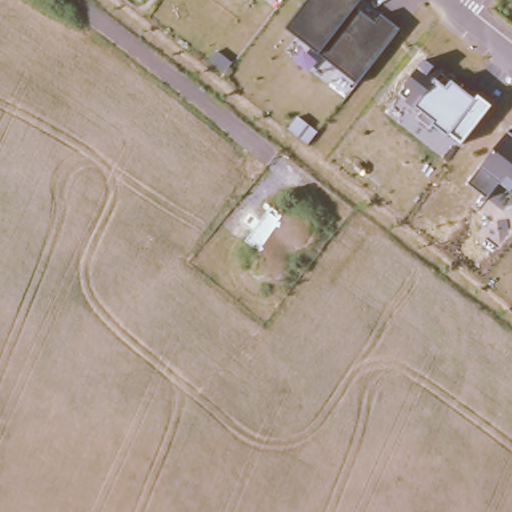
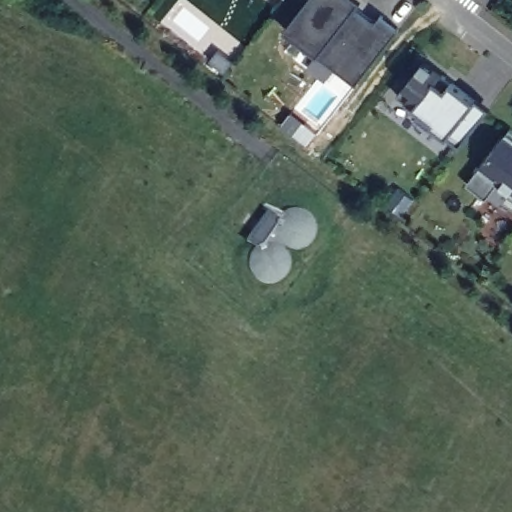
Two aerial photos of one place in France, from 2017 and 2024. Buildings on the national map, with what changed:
unchanged [(317,53),(287,27),(309,0),(362,0),(357,6),(378,23),(385,15),(400,29),(357,83),(317,53)]
unchanged [(451,135),(400,93),(427,59),(477,102),(486,109),(460,140),(451,135)]
unchanged [(512,130),(512,192),(499,181),(486,201),(471,181),(512,130)]

